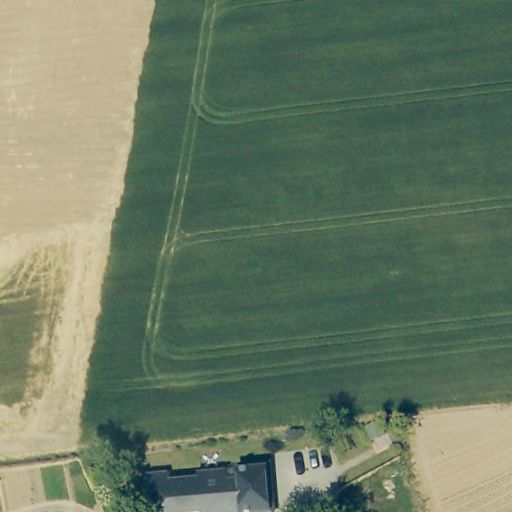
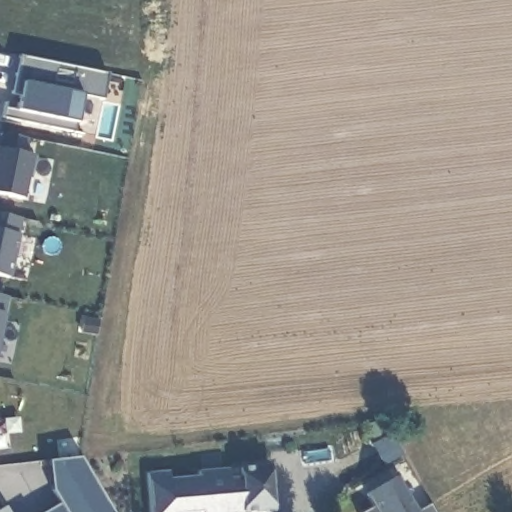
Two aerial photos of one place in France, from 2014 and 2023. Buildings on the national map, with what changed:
new [(103,100),(81,95),(75,123),(72,132),(2,118),(4,107),(17,110),(20,95),(13,94),(22,56),(108,74),(103,100)]
new [(35,157),(31,180),(26,178),(21,199),(0,195),(0,139),(1,132),(28,137),(28,155),(35,157)]
new [(0,276),(0,215),(21,219),(8,277),(0,276)]
new [(0,330),(0,294),(9,296),(3,315),(0,330)]
new [(59,504),(50,489),(48,461),(79,458),(110,512),(44,512),(59,504)]
unchanged [(169,473),(169,480),(198,477),(198,472),(237,468),(268,466),(270,491),(274,491),(276,512),(147,512),(143,475),(169,473)]
unchanged [(372,507),(365,492),(397,475),(417,512),(363,512),(372,507)]
unchanged [(431,505),(435,512),(418,512),(431,505)]
new [(8,512),(0,512),(0,510),(6,507),(8,512)]

